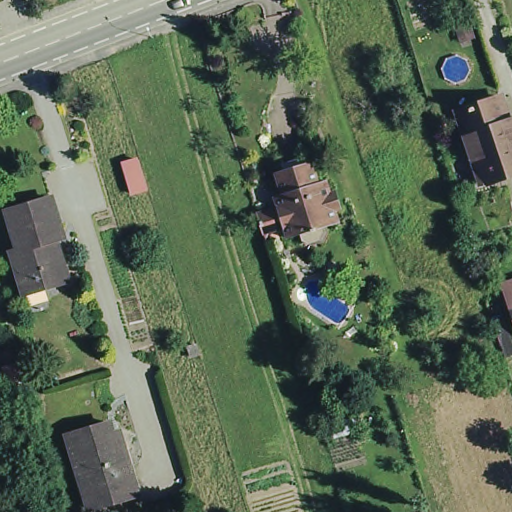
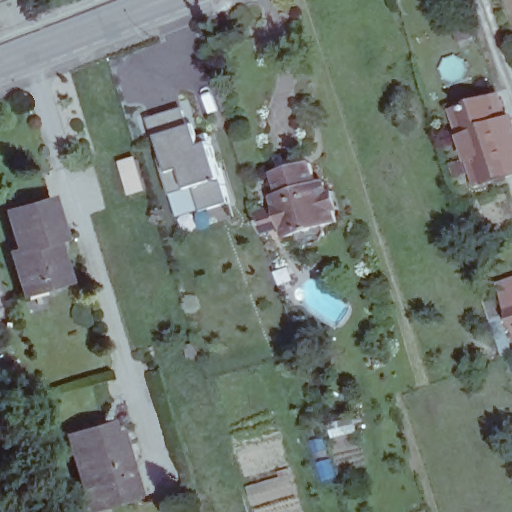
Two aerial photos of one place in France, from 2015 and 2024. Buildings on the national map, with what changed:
unchanged [(458,114),(464,112),(501,99),(510,125),(512,124),(512,174),(494,180),(481,184),(479,177),(466,139),(458,114)]
new [(193,108),(206,148),(216,144),(231,203),(202,213),(196,187),(174,194),(151,118),(193,108)]
unchanged [(146,193),(131,197),(120,163),(136,159),(146,193)]
unchanged [(311,160),(316,177),(321,176),(326,195),(336,193),(340,210),(334,214),(336,221),(280,242),(276,231),(261,235),(256,215),(281,207),(270,173),(311,160)]
unchanged [(63,231),(55,234),(68,275),(25,287),(13,247),(19,244),(8,206),(51,193),(63,231)]
unchanged [(512,296),(512,309),(508,297),(512,296)]
unchanged [(82,496),(63,433),(103,421),(111,444),(118,442),(136,494),(106,503),(86,509),(82,496)]

